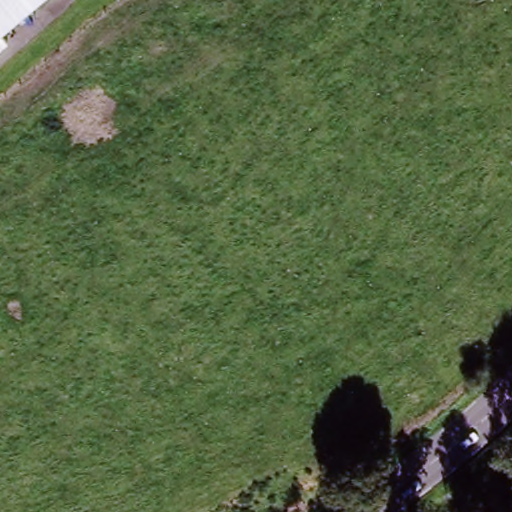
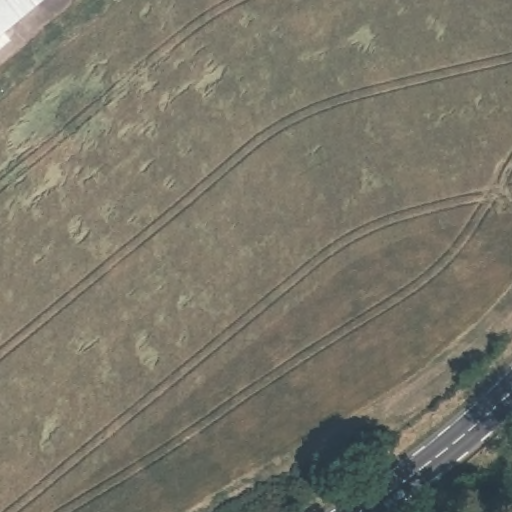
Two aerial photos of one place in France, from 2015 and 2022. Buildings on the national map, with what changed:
unchanged [(0,0),(35,0),(0,28),(0,0)]
unchanged [(0,41),(0,39),(1,40),(0,41)]

